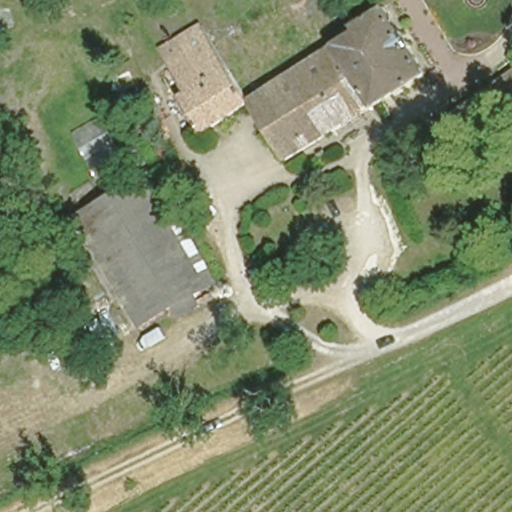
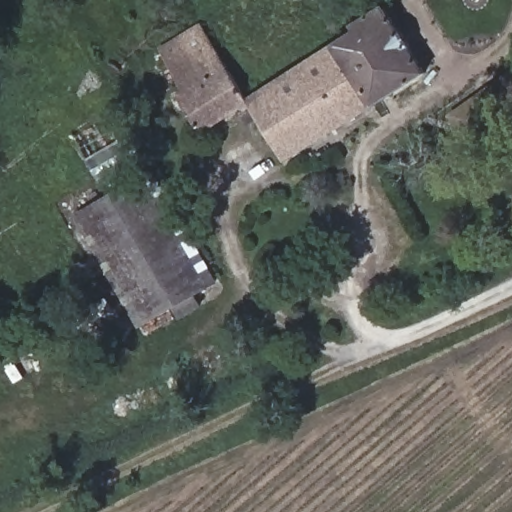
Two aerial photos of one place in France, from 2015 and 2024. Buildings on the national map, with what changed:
unchanged [(425,76),(286,162),(249,106),(198,134),(175,94),(184,90),(159,46),(200,23),(243,97),(384,6),(425,76)]
unchanged [(461,138),(447,114),(512,70),(512,124),(503,112),(461,138)]
unchanged [(212,280),(200,287),(191,293),(198,306),(180,318),(173,306),(138,326),(109,277),(82,233),(74,218),(82,213),(140,179),(150,174),(185,231),(192,246),(212,280)]

